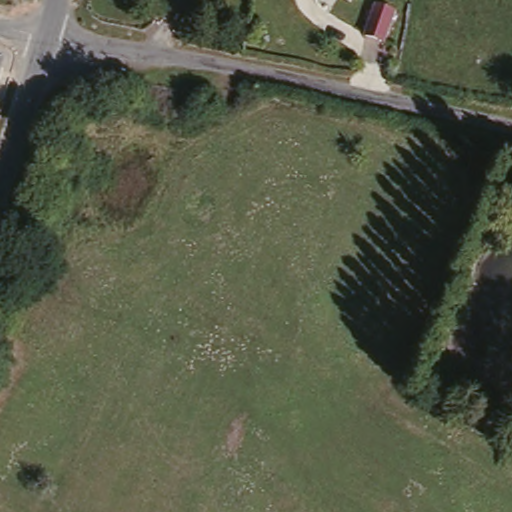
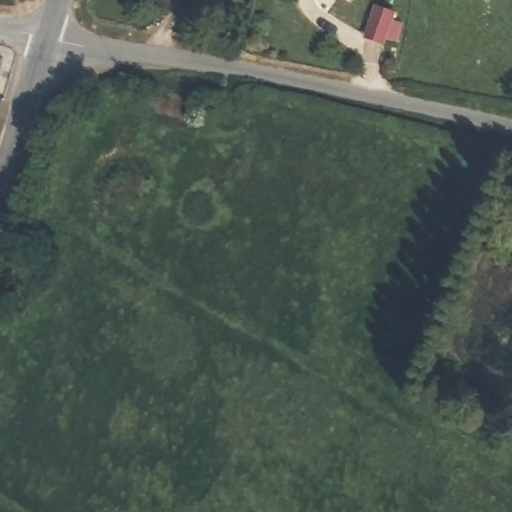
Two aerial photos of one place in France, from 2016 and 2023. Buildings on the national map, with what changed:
unchanged [(396,17),(382,45),(368,38),(383,10),(396,17)]
unchanged [(4,59),(0,76),(0,58),(4,59)]

